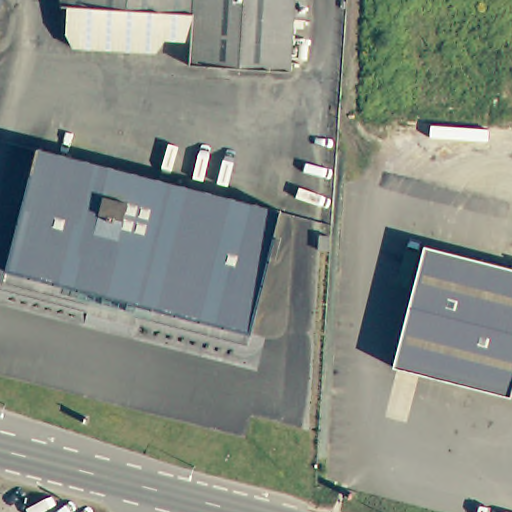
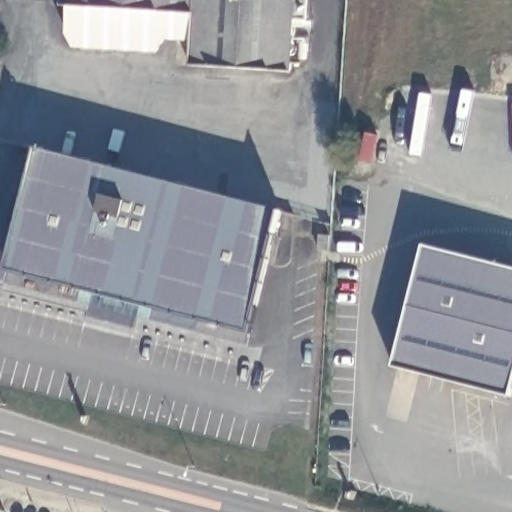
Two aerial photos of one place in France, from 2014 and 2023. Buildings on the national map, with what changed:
unchanged [(294,19),(290,71),(191,65),(192,41),(166,39),(157,52),(75,47),(74,47),(67,34),(70,7),(63,6),(63,0),(308,0),(308,19),(294,19)]
unchanged [(43,143),(288,206),(257,325),(13,263),(43,143)]
unchanged [(330,235),(329,251),(319,250),(320,234),(330,235)]
unchanged [(512,268),(512,397),(394,365),(426,244),(512,268)]
unchanged [(257,325),(254,339),(10,276),(13,263),(257,325)]

